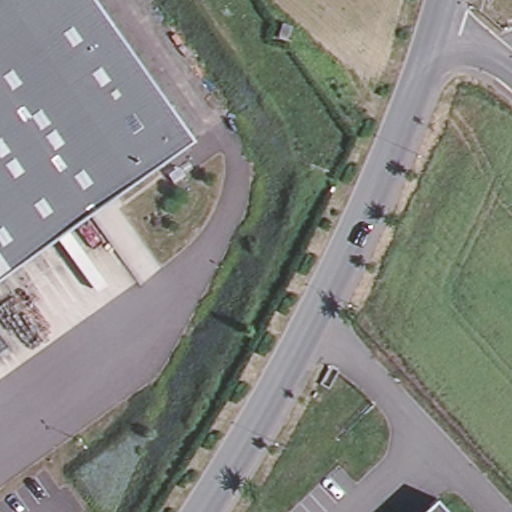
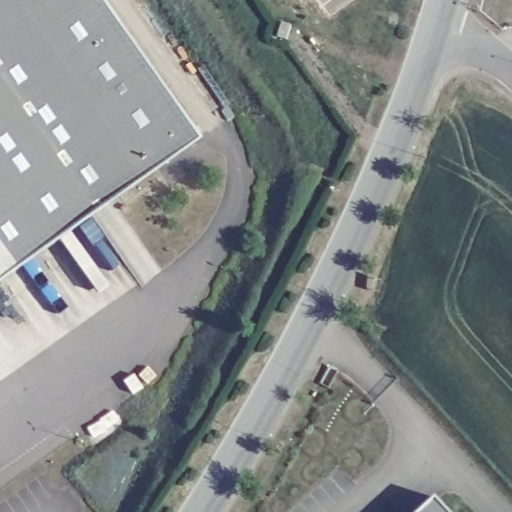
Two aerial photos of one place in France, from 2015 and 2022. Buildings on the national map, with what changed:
unchanged [(0,277),(0,0),(95,0),(194,140),(0,277)]
unchanged [(290,27),(286,41),(278,38),(282,24),(290,27)]
unchanged [(447,512),(423,512),(435,500),(447,512)]

